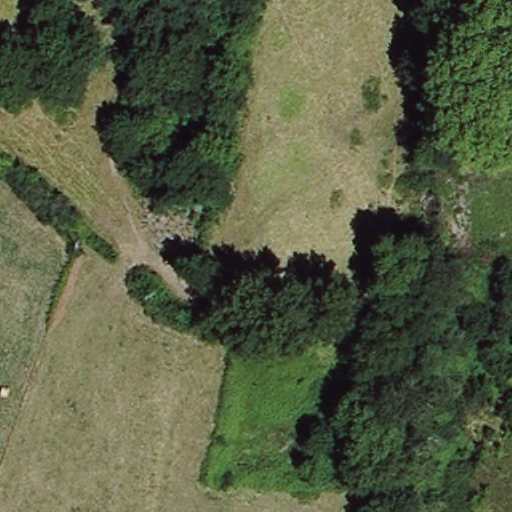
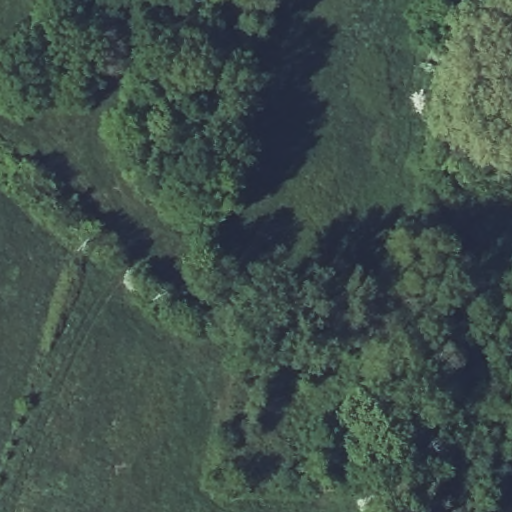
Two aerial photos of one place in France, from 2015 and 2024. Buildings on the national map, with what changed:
[]

